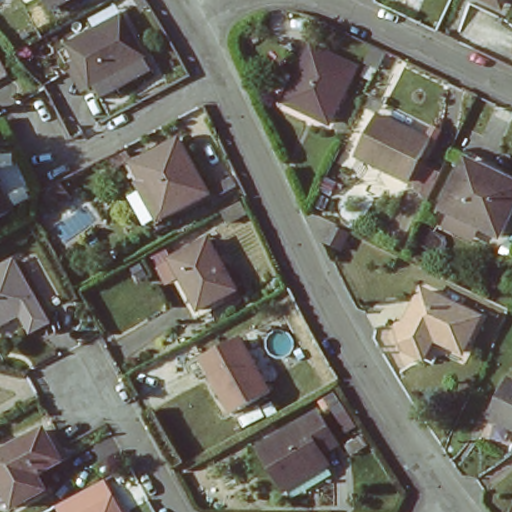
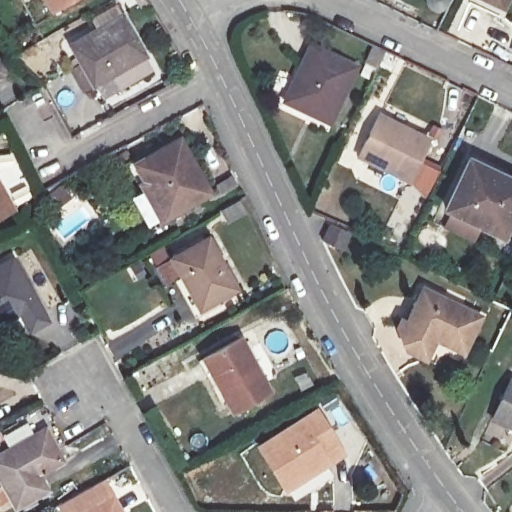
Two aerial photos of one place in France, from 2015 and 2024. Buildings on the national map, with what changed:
unchanged [(486,0),(506,0),(503,9),(486,0)]
unchanged [(89,83),(68,44),(118,17),(141,55),(138,57),(146,70),(110,88),(104,75),(89,83)]
unchanged [(356,70),(327,125),(283,103),(311,48),(356,70)]
unchanged [(7,77),(0,80),(0,63),(6,76),(7,77)]
unchanged [(378,115),(430,141),(409,184),(356,158),(378,115)]
unchanged [(176,137),(206,193),(160,216),(132,162),(176,137)]
unchanged [(468,161),(512,182),(512,211),(500,238),(443,211),(468,161)]
unchanged [(0,214),(0,186),(12,206),(0,214)]
unchanged [(328,221),(331,223),(350,233),(341,251),(320,241),(328,221)]
unchanged [(206,237),(233,290),(194,310),(166,256),(206,237)]
unchanged [(0,326),(0,267),(8,263),(33,307),(0,326)]
unchanged [(483,315),(466,351),(439,340),(430,356),(411,348),(403,326),(407,320),(411,322),(427,289),(483,315)]
unchanged [(241,334),(270,388),(231,408),(203,355),(241,334)]
unchanged [(487,419),(507,378),(512,381),(512,431),(487,419)]
unchanged [(334,439),(319,447),(326,459),(281,484),(257,440),(315,407),(334,439)]
unchanged [(35,471),(44,488),(12,505),(0,482),(0,451),(42,429),(58,459),(35,471)]
unchanged [(114,512),(69,512),(67,507),(100,489),(114,512)]

